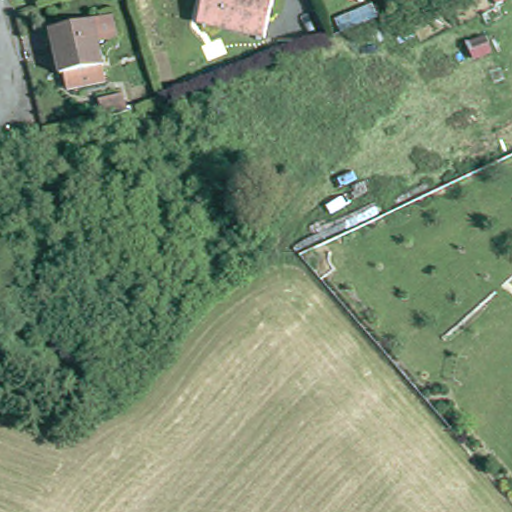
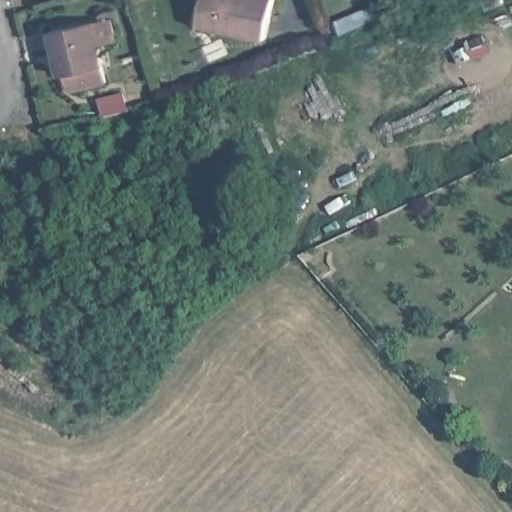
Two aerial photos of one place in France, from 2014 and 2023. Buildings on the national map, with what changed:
unchanged [(198,24),(203,0),(273,0),(265,38),(198,24)]
unchanged [(105,82),(67,90),(64,75),(61,75),(51,31),(92,22),(112,17),(117,39),(97,44),(102,66),(105,82)]
unchanged [(100,100),(123,94),(128,112),(105,118),(100,100)]

